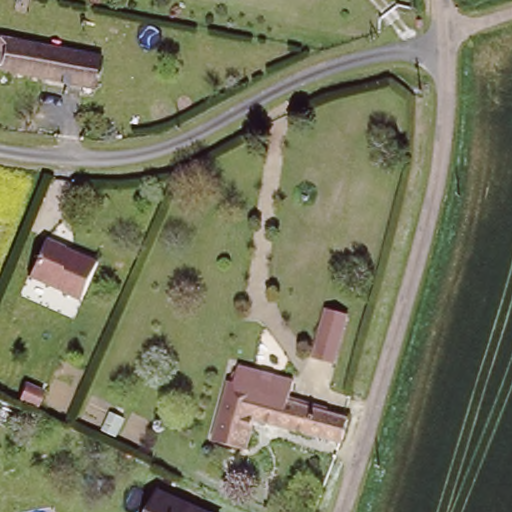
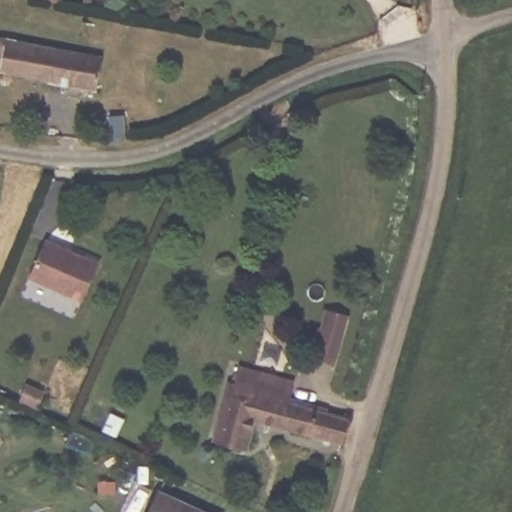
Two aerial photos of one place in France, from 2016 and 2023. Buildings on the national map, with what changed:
unchanged [(70,85),(0,71),(0,38),(109,59),(102,91),(86,88),(85,97),(70,94),(70,85)]
unchanged [(95,260),(80,296),(30,275),(45,240),(95,260)]
unchanged [(322,302),(346,310),(336,358),(311,352),(322,302)]
unchanged [(346,441),(339,440),(253,416),(245,447),(212,437),(225,383),(231,386),(237,362),(287,376),(282,399),(346,417),(352,418),(346,441)]
unchanged [(150,512),(162,487),(213,512),(150,512)]

